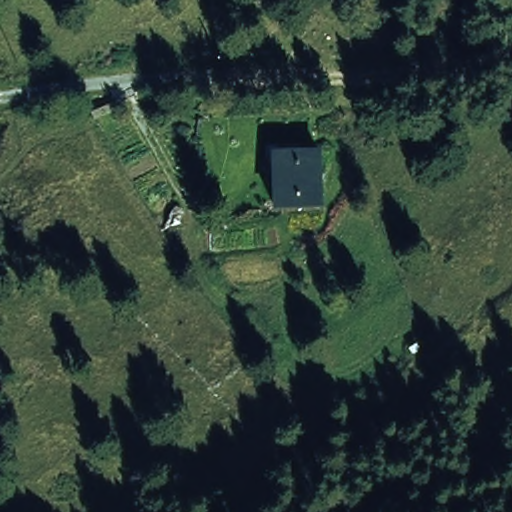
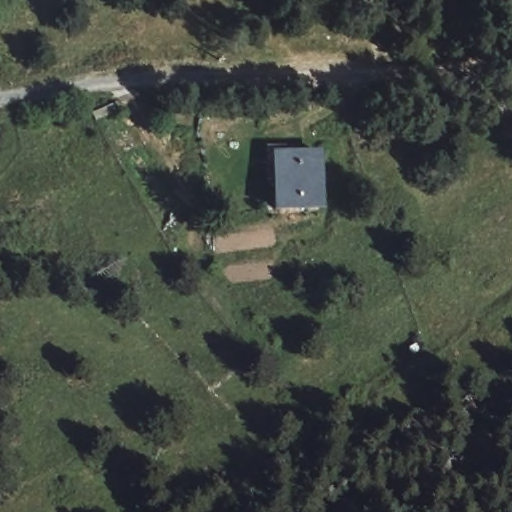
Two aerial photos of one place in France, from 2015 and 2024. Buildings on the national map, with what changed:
unchanged [(324,143),(321,213),(273,212),(276,146),(324,143)]

